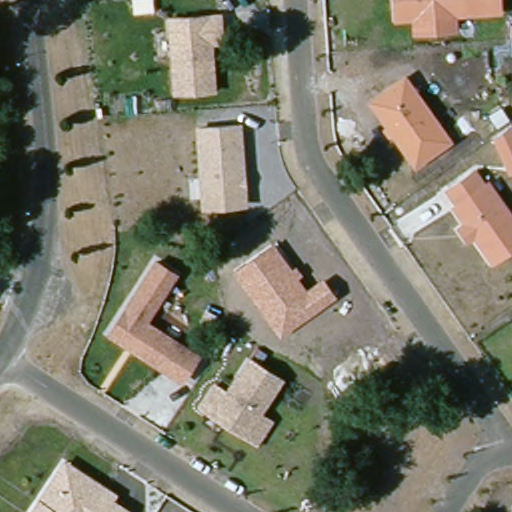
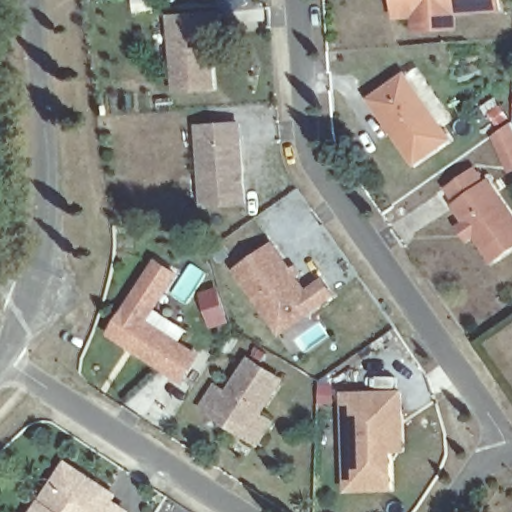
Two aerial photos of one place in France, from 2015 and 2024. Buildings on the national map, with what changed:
unchanged [(413,30),(412,15),(393,17),(392,0),(496,0),(497,9),(451,13),(452,28),(413,30)]
unchanged [(172,17),(222,14),(224,31),(225,40),(213,41),(215,88),(177,90),(172,17)]
unchanged [(452,143),(411,169),(389,137),(385,139),(379,130),(383,126),(365,100),(405,73),(452,143)]
unchanged [(247,202),(206,205),(200,127),(240,124),(247,202)]
unchanged [(512,163),(508,165),(494,135),(511,127),(512,129),(512,163)]
unchanged [(464,222),(451,205),(455,203),(445,189),(472,170),(482,184),(485,182),(512,220),(512,245),(490,260),(471,233),(464,239),(456,228),(464,222)]
unchanged [(290,266),(295,263),(303,275),(298,278),(306,288),(323,275),(338,297),(280,338),(235,270),(275,244),(290,266)]
unchanged [(110,333),(156,261),(176,273),(145,321),(199,355),(184,380),(110,333)]
unchanged [(255,443),(210,415),(199,407),(211,387),(223,394),(245,359),(277,379),(255,414),(267,422),(255,443)]
new [(403,391),(405,453),(391,454),(393,491),(344,494),(340,394),(403,391)]
unchanged [(115,501),(130,511),(130,512),(31,512),(38,501),(65,461),(119,495),(115,501)]

